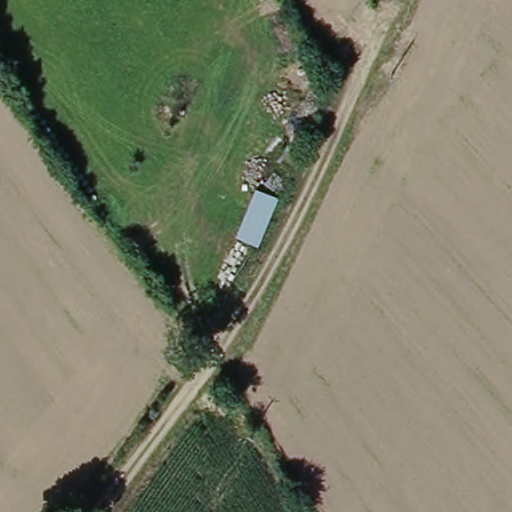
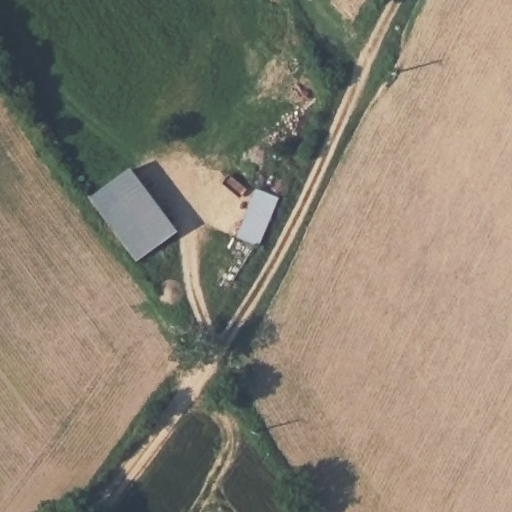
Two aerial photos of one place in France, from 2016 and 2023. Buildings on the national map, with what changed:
new [(174,230),(134,261),(88,197),(128,167),(174,230)]
unchanged [(257,192),(278,201),(258,247),(237,238),(257,192)]

